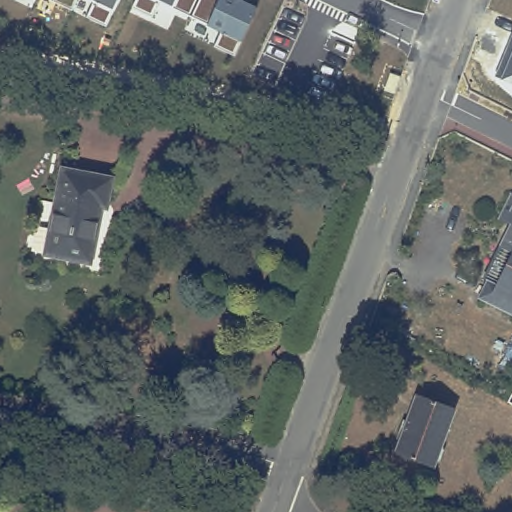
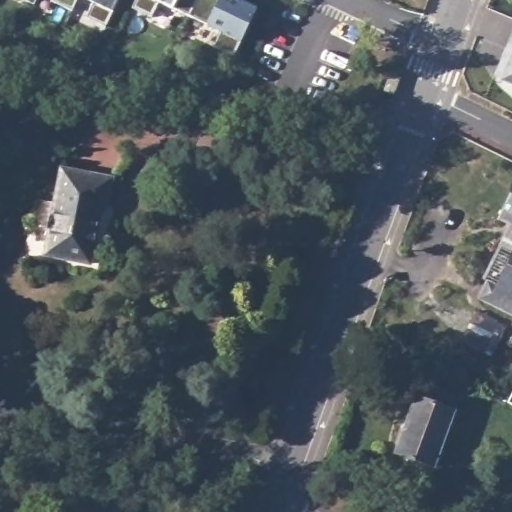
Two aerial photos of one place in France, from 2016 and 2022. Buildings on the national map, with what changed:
unchanged [(71,9),(54,1),(54,0),(77,0),(71,9)]
unchanged [(114,10),(105,25),(86,16),(95,1),(92,0),(118,0),(114,10)]
unchanged [(256,7),(240,42),(234,55),(212,45),(220,32),(206,25),(171,7),(157,1),(150,16),(131,7),(135,0),(241,0),(256,7)]
unchanged [(500,80),(495,76),(512,34),(512,85),(500,80)]
unchanged [(45,257),(61,167),(111,176),(105,211),(99,210),(90,265),(45,257)]
unchanged [(502,217),(512,199),(512,222),(502,217)]
unchanged [(505,246),(512,233),(512,250),(505,246)]
unchanged [(483,296),(492,280),(502,285),(512,266),(512,311),(483,296)]
unchanged [(397,452),(417,395),(455,409),(434,465),(397,452)]

